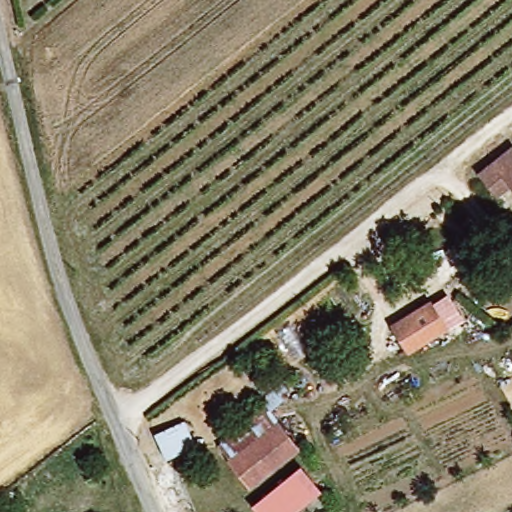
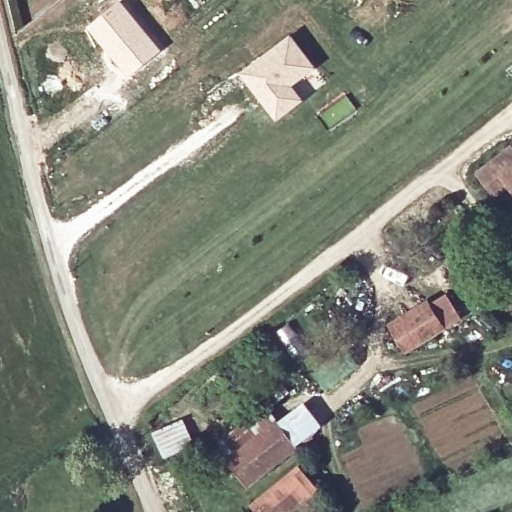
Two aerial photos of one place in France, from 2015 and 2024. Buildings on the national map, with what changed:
new [(120,0),(122,0),(162,49),(127,77),(87,27),(120,0)]
new [(291,35),(315,67),(292,86),(302,100),(277,119),(242,72),(291,35)]
unchanged [(500,190),(483,167),(512,147),(512,182),(500,190)]
unchanged [(463,318),(408,351),(391,323),(428,300),(430,303),(448,293),(463,318)]
unchanged [(278,420),(241,457),(227,444),(267,406),(278,420)]
unchanged [(299,443),(260,478),(241,457),(278,420),(299,443)]
unchanged [(175,447),(147,459),(139,441),(167,430),(175,447)]
unchanged [(320,486),(292,512),(258,512),(298,468),(320,486)]

